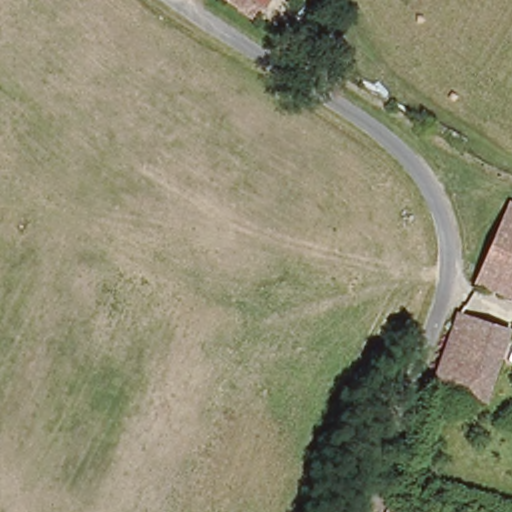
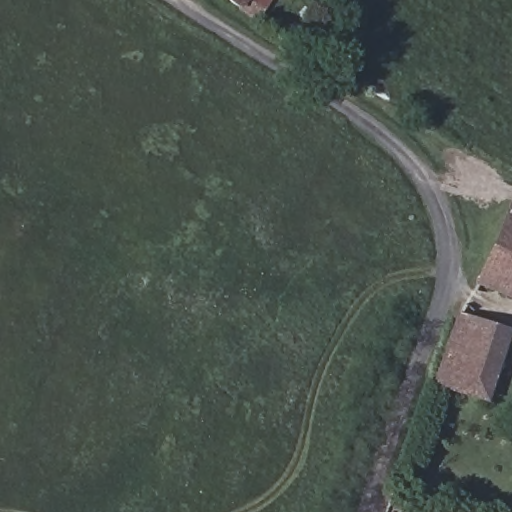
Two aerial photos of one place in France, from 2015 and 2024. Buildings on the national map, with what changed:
unchanged [(255,13),(235,0),(262,0),(255,13)]
unchanged [(505,221),(512,222),(512,301),(489,296),(505,221)]
unchanged [(442,387),(457,316),(479,321),(468,392),(442,387)]
unchanged [(503,374),(499,397),(468,392),(479,321),(512,327),(512,332),(510,345),(512,345),(512,375),(503,374)]

